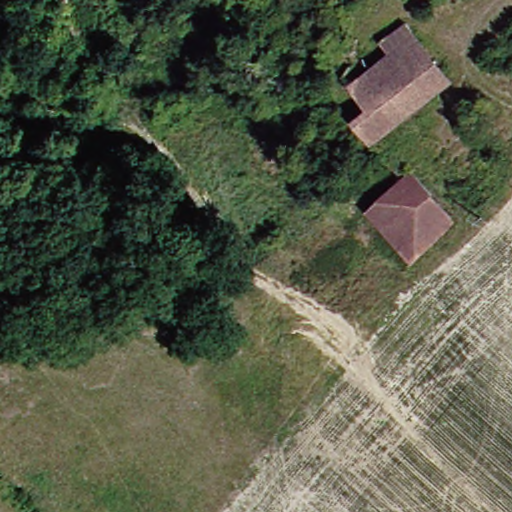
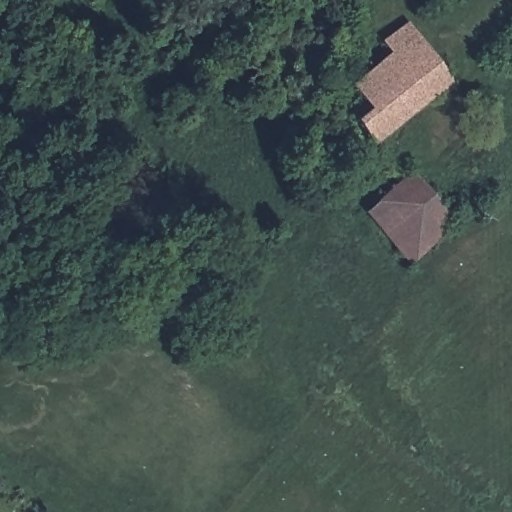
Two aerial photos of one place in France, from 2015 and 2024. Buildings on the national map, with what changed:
unchanged [(366,128),(383,113),(358,80),(382,59),(403,42),(425,25),(453,60),(468,79),(447,95),(388,143),(366,128)]
unchanged [(417,261),(366,214),(422,168),(464,219),(417,261)]

